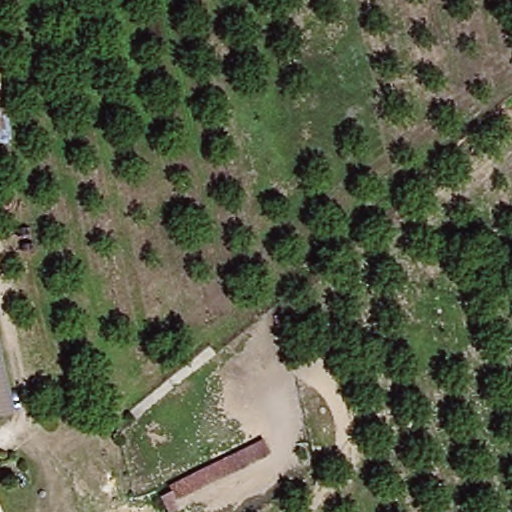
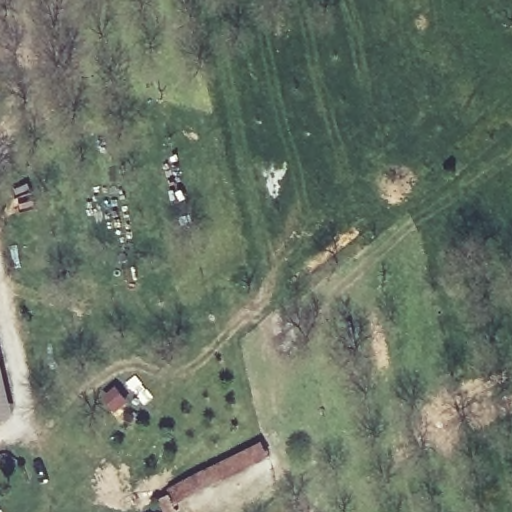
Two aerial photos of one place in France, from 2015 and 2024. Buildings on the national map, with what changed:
unchanged [(1,122),(0,123),(0,120),(1,122)]
unchanged [(19,417),(0,420),(0,340),(19,417)]
unchanged [(188,509),(182,512),(173,512),(166,497),(176,493),(175,484),(268,439),(275,457),(184,500),(188,509)]

